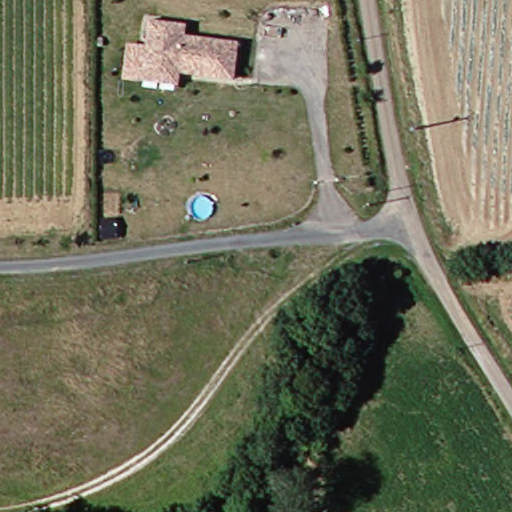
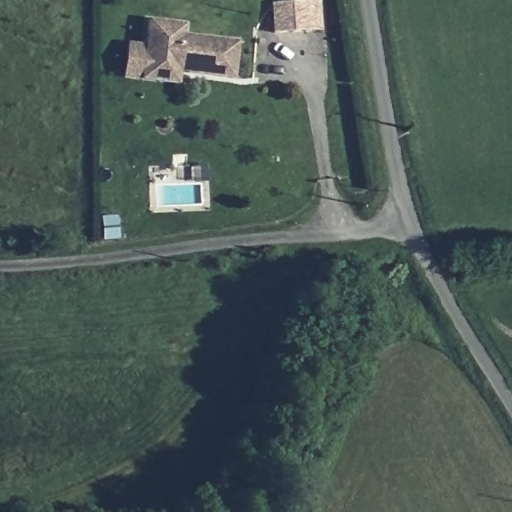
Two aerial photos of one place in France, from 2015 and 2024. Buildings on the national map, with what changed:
new [(322,32),(272,34),(271,4),(321,2),(322,32)]
unchanged [(145,77),(145,65),(148,17),(185,17),(185,30),(238,34),(237,69),(181,67),(181,79),(145,77)]

